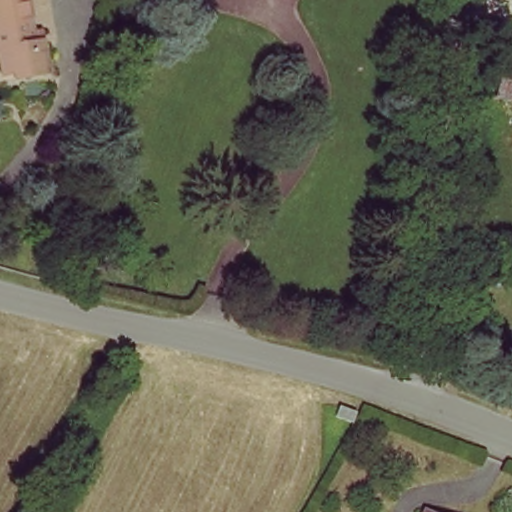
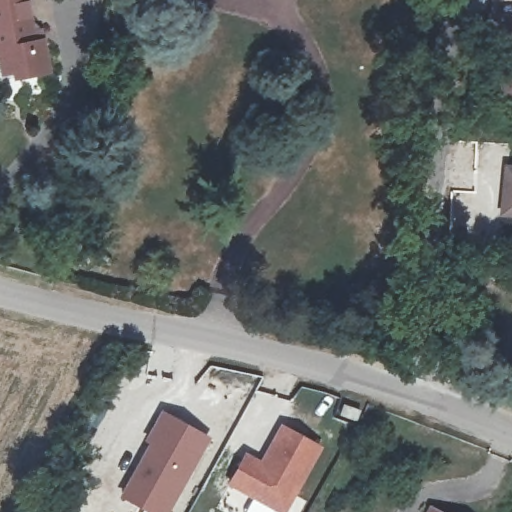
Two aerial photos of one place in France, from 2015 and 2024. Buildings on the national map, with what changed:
unchanged [(31,1),(38,56),(49,55),(54,84),(23,88),(21,77),(1,81),(0,74),(0,0),(30,0),(31,1)]
unchanged [(499,51),(512,53),(512,101),(492,97),(499,51)]
new [(500,215),(504,164),(512,165),(512,217),(500,215)]
new [(358,421),(343,415),(347,406),(362,412),(358,421)]
new [(162,411),(211,438),(168,512),(148,512),(120,496),(148,444),(144,441),(162,411)]
new [(246,452),(260,460),(281,424),(323,447),(286,512),(276,512),(227,484),(246,452)]
unchanged [(447,512),(430,512),(434,505),(447,512)]

